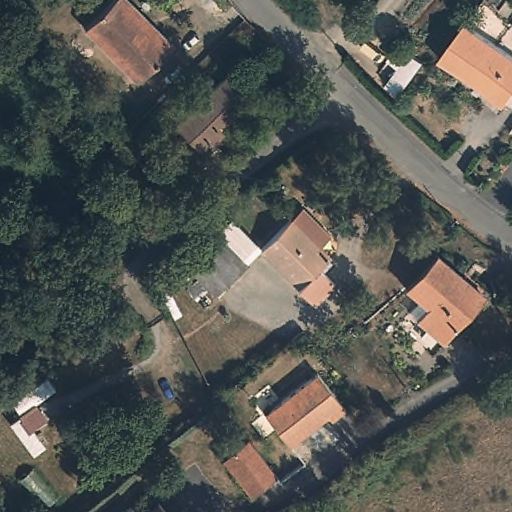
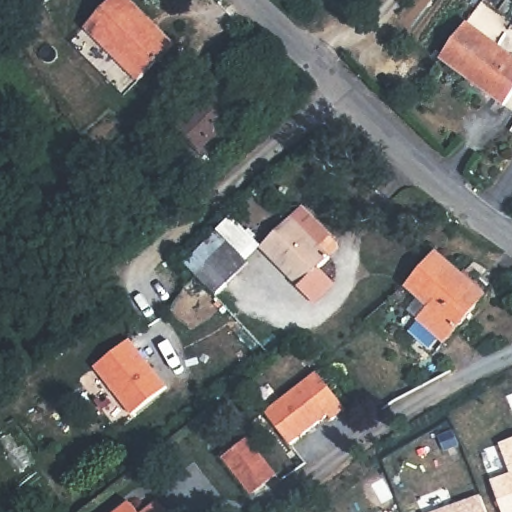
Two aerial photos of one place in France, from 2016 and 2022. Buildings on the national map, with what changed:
unchanged [(139,82),(85,28),(114,2),(116,0),(127,0),(158,33),(172,49),(139,82)]
unchanged [(512,96),(504,107),(440,60),(465,24),(512,58),(512,96)]
unchanged [(173,122),(229,65),(260,96),(246,111),(241,108),(211,139),(221,151),(188,182),(160,151),(162,149),(153,138),(173,122)]
unchanged [(329,239),(319,249),(329,259),(320,271),(334,285),(314,305),(297,289),(298,287),(261,249),(301,210),(329,239)]
unchanged [(215,297),(195,276),(203,269),(192,257),(231,221),(241,232),(228,244),(248,264),(215,297)]
unchanged [(489,292),(444,344),(417,321),(428,310),(406,289),(435,254),(460,275),(464,270),(489,292)]
new [(130,340),(167,388),(131,417),(93,369),(130,340)]
unchanged [(318,375),(346,411),(332,422),(329,417),(291,447),(266,416),(318,375)]
unchanged [(276,476),(251,496),(223,460),(247,439),(276,476)]
new [(499,445),(512,440),(512,512),(501,512),(489,482),(509,474),(499,445)]
new [(487,512),(436,512),(481,495),(487,512)]
unchanged [(146,512),(162,498),(174,512),(146,512)]
unchanged [(146,512),(119,512),(135,499),(146,512)]

